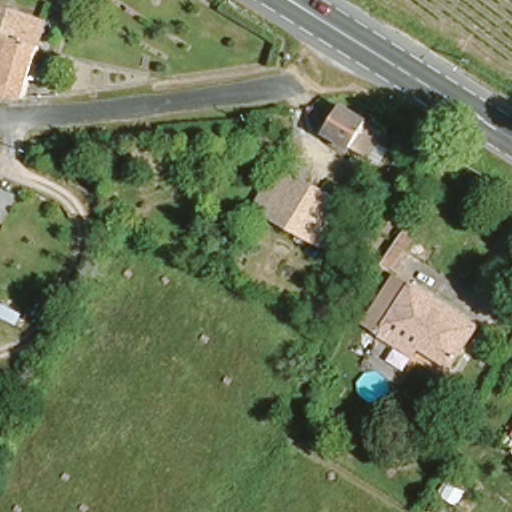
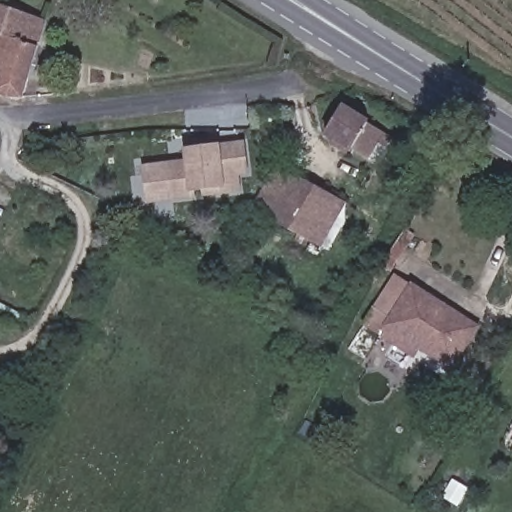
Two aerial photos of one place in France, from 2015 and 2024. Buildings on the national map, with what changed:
unchanged [(0,96),(0,8),(45,21),(22,101),(0,96)]
unchanged [(341,109),(391,138),(382,154),(375,149),(369,160),(325,134),(341,109)]
new [(236,173),(238,190),(209,194),(208,188),(190,190),(190,196),(148,201),(144,166),(187,164),(197,163),(196,149),(217,146),(242,144),(246,172),(236,173)]
unchanged [(277,166),(341,205),(317,246),(252,208),(277,166)]
unchanged [(361,328),(391,273),(476,323),(451,366),(421,348),(427,338),(392,318),(380,339),(361,328)]
unchanged [(512,430),(512,436),(510,435),(512,430)]

